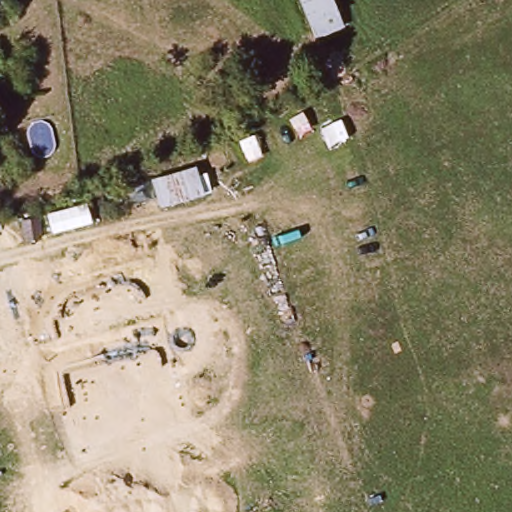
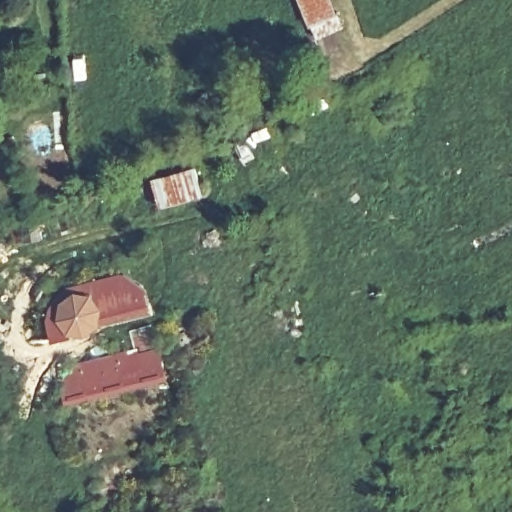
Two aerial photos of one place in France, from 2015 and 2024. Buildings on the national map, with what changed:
unchanged [(345,25),(316,35),(300,0),(333,0),(345,25)]
unchanged [(199,175),(207,174),(212,192),(205,195),(161,208),(153,180),(197,166),(199,175)]
new [(58,306),(65,295),(73,291),(129,275),(130,280),(140,284),(146,293),(150,306),(102,318),(101,326),(89,335),(75,332),(70,327),(55,331),(54,321),(58,306)]
new [(137,349),(132,331),(154,325),(170,384),(71,412),(59,371),(137,349)]

